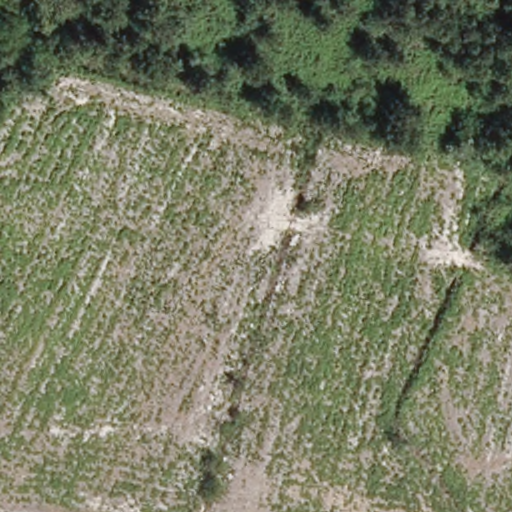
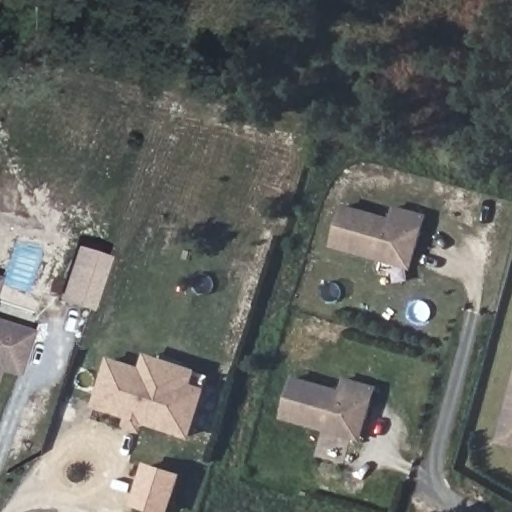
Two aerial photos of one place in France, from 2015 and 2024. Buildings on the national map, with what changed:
new [(395,206),(428,215),(425,229),(412,270),(332,247),(344,205),(391,217),(395,206)]
new [(73,248),(106,259),(90,310),(56,299),(73,248)]
new [(2,277),(0,283),(0,276),(2,277)]
new [(35,330),(20,377),(0,371),(0,319),(35,330)]
new [(146,354),(199,370),(195,385),(209,389),(191,440),(145,425),(142,434),(124,429),(127,420),(92,409),(110,357),(142,367),(146,354)]
new [(362,442),(281,420),(293,377),(341,390),(345,378),(378,387),(375,400),(362,442)]
new [(512,387),(512,448),(496,445),(512,387)]
new [(145,462),(181,474),(169,512),(155,512),(133,505),(145,462)]

